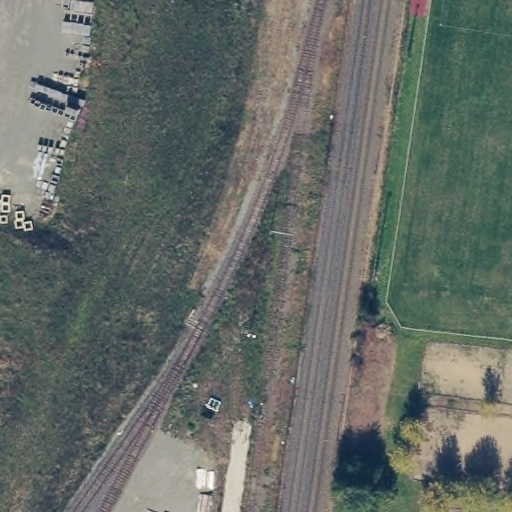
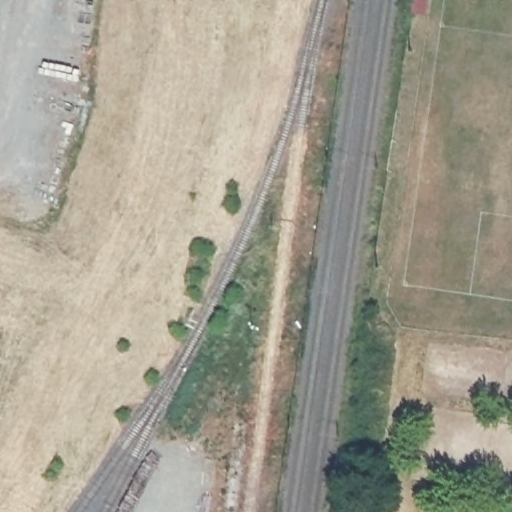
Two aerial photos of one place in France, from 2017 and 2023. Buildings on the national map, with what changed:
unchanged [(417,30),(421,0),(433,0),(429,32),(417,30)]

